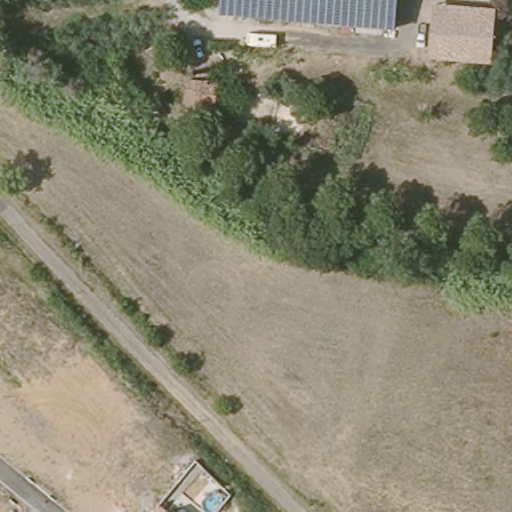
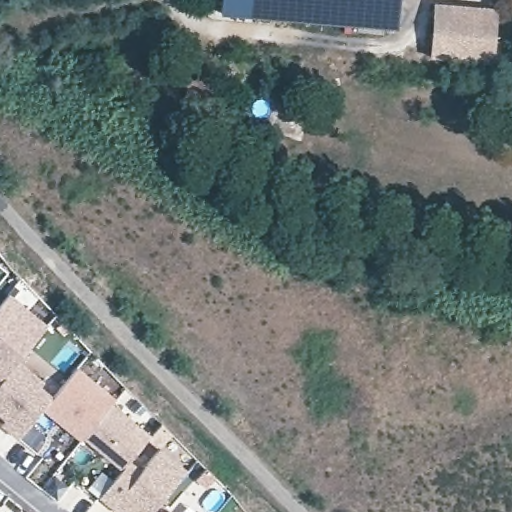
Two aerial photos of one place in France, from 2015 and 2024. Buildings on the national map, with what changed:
unchanged [(223,0),(396,0),(393,32),(222,16),(223,0)]
unchanged [(495,9),(493,62),(429,59),(432,7),(495,9)]
unchanged [(222,80),(223,117),(183,119),(184,82),(222,80)]
new [(47,326),(0,383),(0,335),(0,304),(9,294),(47,326)]
new [(7,428),(11,423),(0,414),(0,383),(18,361),(44,382),(40,387),(53,397),(18,438),(7,428)]
new [(42,410),(77,367),(116,400),(81,442),(42,410)]
new [(40,387),(49,376),(62,387),(53,397),(40,387)]
new [(112,403),(150,436),(129,460),(122,470),(84,438),(112,403)]
new [(122,512),(121,511),(120,512),(115,512),(99,498),(122,470),(129,460),(142,470),(160,447),(188,469),(160,502),(151,512),(122,512)]
unchanged [(170,510),(173,512),(151,512),(160,502),(170,510)]

